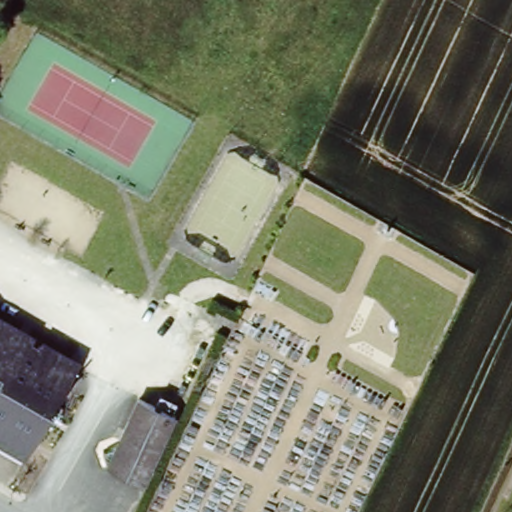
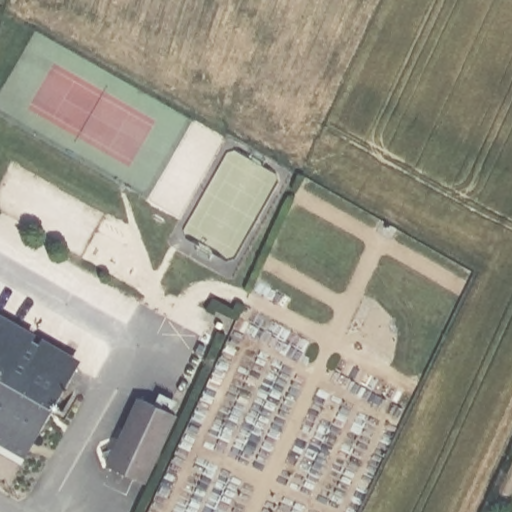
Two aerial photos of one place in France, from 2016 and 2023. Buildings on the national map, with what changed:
unchanged [(70,366),(30,454),(0,440),(0,334),(70,366)]
unchanged [(137,396),(173,413),(142,481),(106,464),(137,396)]

